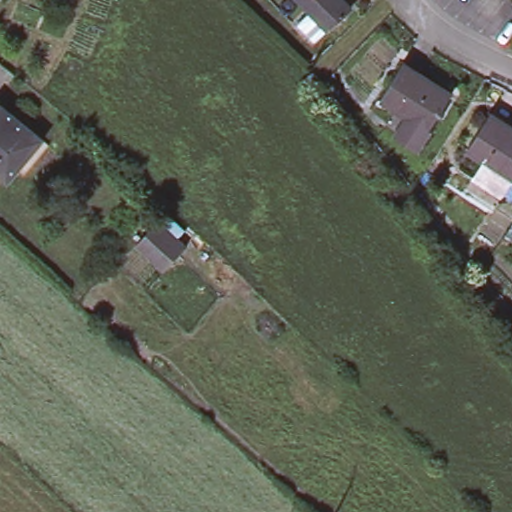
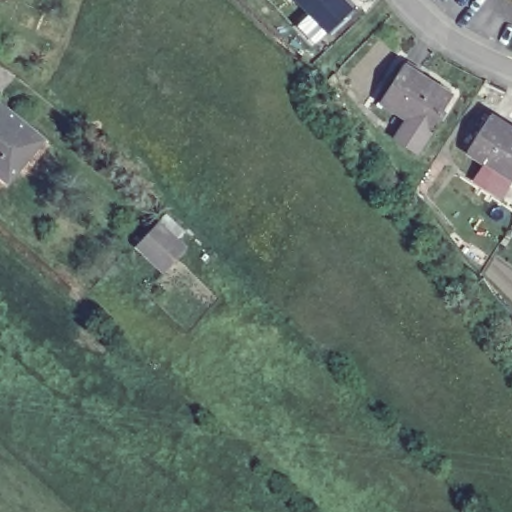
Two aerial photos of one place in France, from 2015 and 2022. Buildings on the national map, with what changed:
unchanged [(327,36),(299,0),(337,0),(350,16),(327,36)]
unchanged [(397,136),(410,115),(384,98),(408,63),(453,93),(429,127),(416,148),(397,136)]
unchanged [(47,139),(22,170),(13,163),(4,175),(0,171),(0,100),(39,131),(47,139)]
unchanged [(512,132),(512,168),(505,179),(460,148),(483,113),(512,132)]
unchanged [(161,221),(190,247),(168,272),(139,246),(161,221)]

